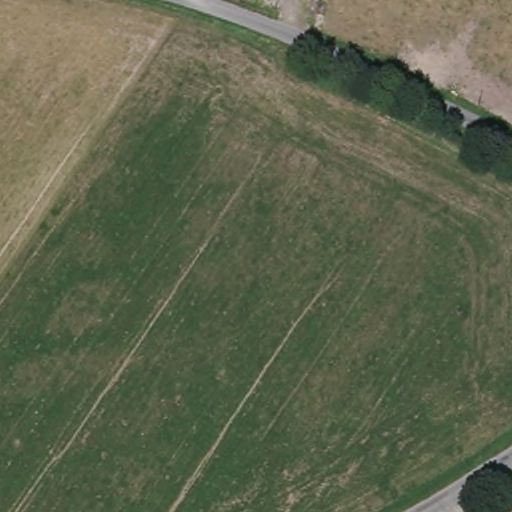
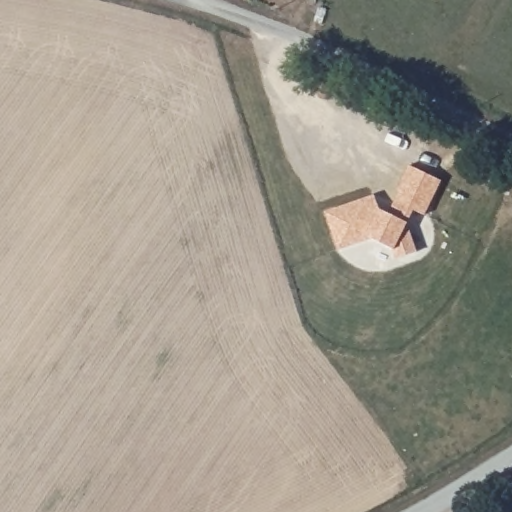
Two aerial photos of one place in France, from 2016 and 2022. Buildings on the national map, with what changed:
new [(379,207),(388,213),(399,191),(396,190),(408,166),(441,180),(426,215),(414,210),(408,225),(418,251),(395,258),(391,247),(372,238),(338,250),(324,212),(375,194),(379,207)]

